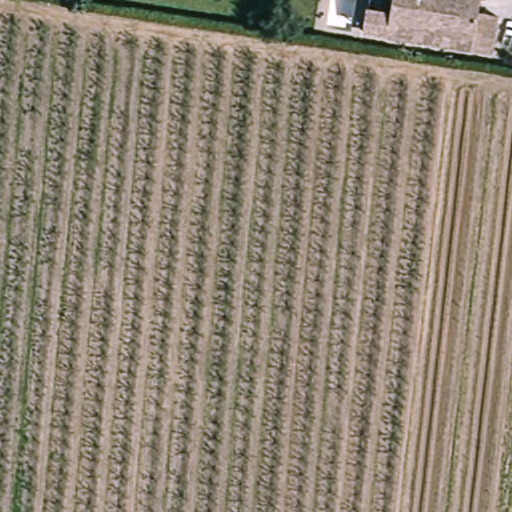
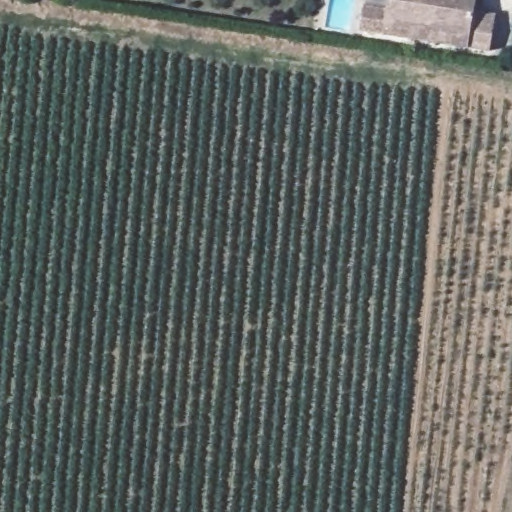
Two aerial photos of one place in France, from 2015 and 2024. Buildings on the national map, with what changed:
unchanged [(384,37),(389,0),(474,0),(473,12),(492,15),(486,52),(467,49),(409,41),(384,37)]

